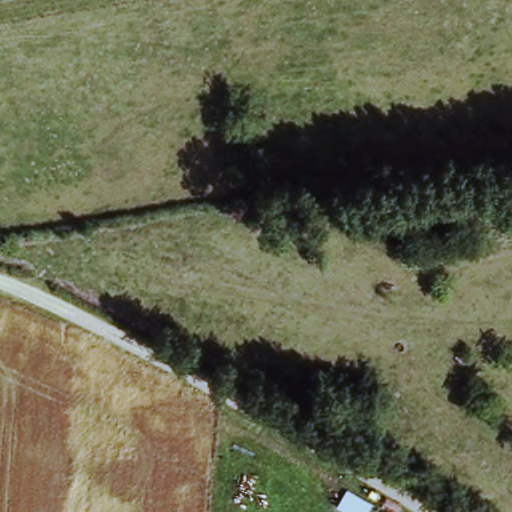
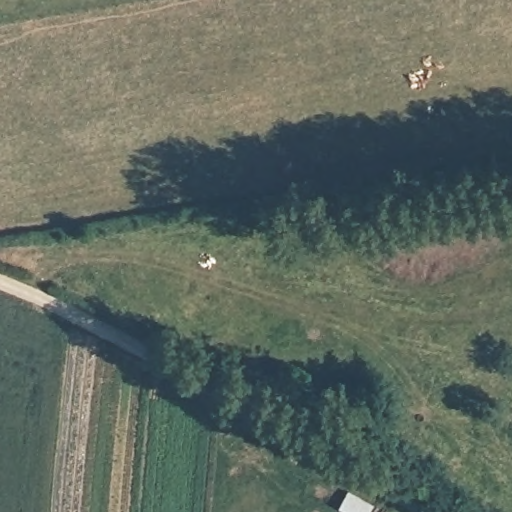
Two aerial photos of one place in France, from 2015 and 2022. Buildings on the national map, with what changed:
unchanged [(337,506),(348,487),(375,505),(371,512),(349,512),(337,506)]

